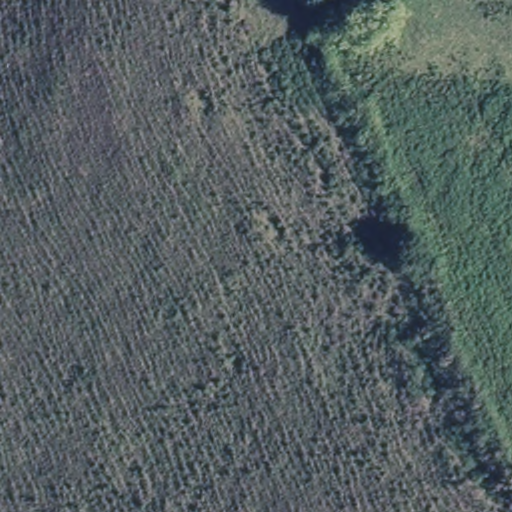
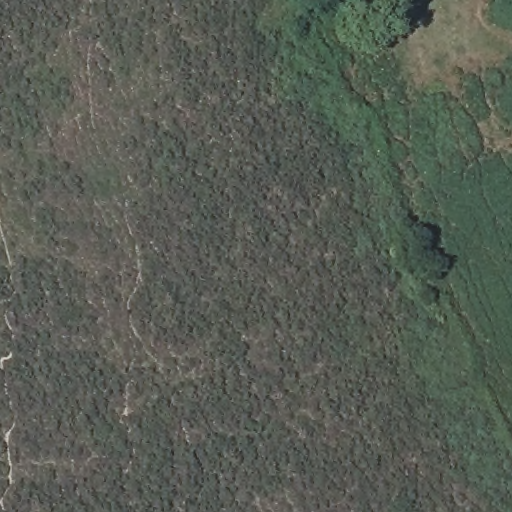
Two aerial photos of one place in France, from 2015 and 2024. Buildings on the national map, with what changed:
unchanged [(361,33),(341,28),(347,0),(371,0),(361,33)]

